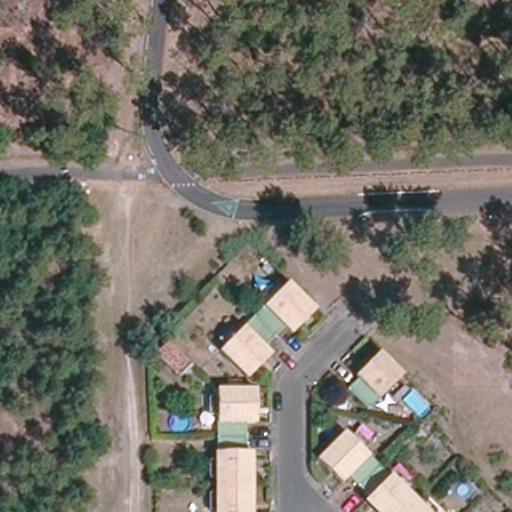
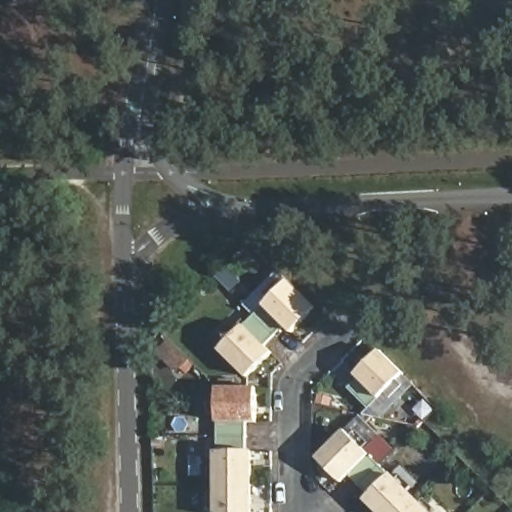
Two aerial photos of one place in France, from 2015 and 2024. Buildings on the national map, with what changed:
unchanged [(255,316),(290,281),(317,310),(293,333),(286,326),(275,336),(255,316)]
unchanged [(265,347),(272,353),(248,377),(220,350),(255,316),(275,336),(265,347)]
unchanged [(369,408),(349,387),(359,377),(356,375),(381,351),(404,375),(369,408)]
unchanged [(213,388),(252,388),(252,422),(242,422),(242,437),(213,437),(213,388)]
unchanged [(355,485),(344,475),(337,482),(313,458),(341,430),(375,465),(355,485)]
unchanged [(242,452),(246,452),(247,485),(213,486),(213,437),(242,437),(242,452)]
unchanged [(362,498),(365,496),(355,485),(375,465),(410,498),(396,512),(376,512),(362,498)]
unchanged [(213,486),(247,485),(247,512),(213,512),(213,486)]
unchanged [(410,498),(423,512),(396,512),(410,498)]

